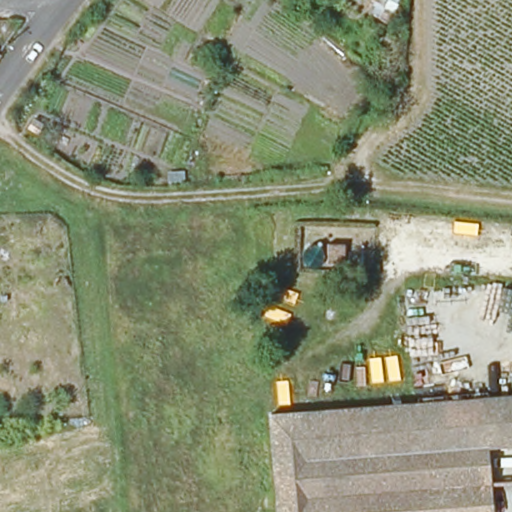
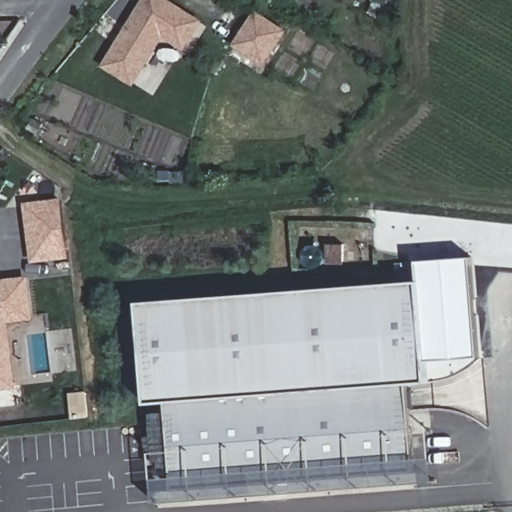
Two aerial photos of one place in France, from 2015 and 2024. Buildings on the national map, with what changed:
new [(142,0),(171,0),(204,20),(185,51),(163,38),(134,86),(101,66),(142,0)]
new [(256,9),(288,30),(264,66),(232,45),(256,9)]
new [(33,259),(31,244),(27,205),(62,202),(65,241),(67,257),(33,259)]
new [(427,360),(420,281),(419,281),(418,281),(416,262),(470,257),(478,356),(427,360)]
new [(17,388),(0,390),(0,279),(30,275),(35,319),(10,322),(17,388)]
new [(146,402),(140,302),(420,281),(428,381),(410,382),(415,470),(174,489),(171,400),(146,402)]
demolished [(495,512),(280,512),(275,448),(273,420),(357,414),(385,412),(488,403),(512,401),(512,451),(491,452),(495,512)]

